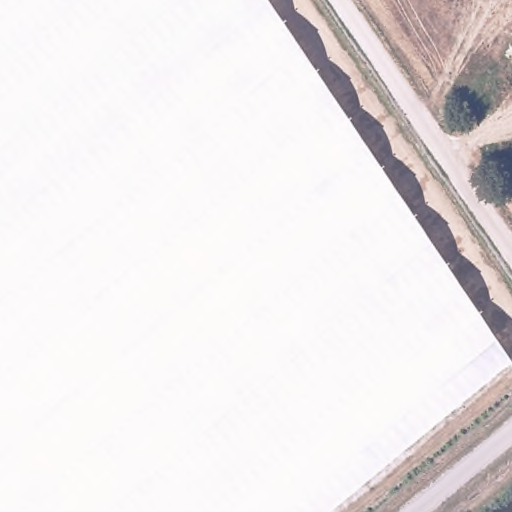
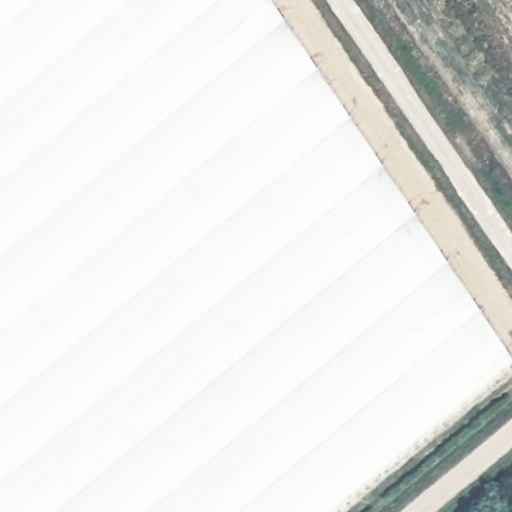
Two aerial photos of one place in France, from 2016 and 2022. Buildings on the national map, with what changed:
unchanged [(0,0),(269,0),(511,358),(326,512),(0,512),(0,0)]

